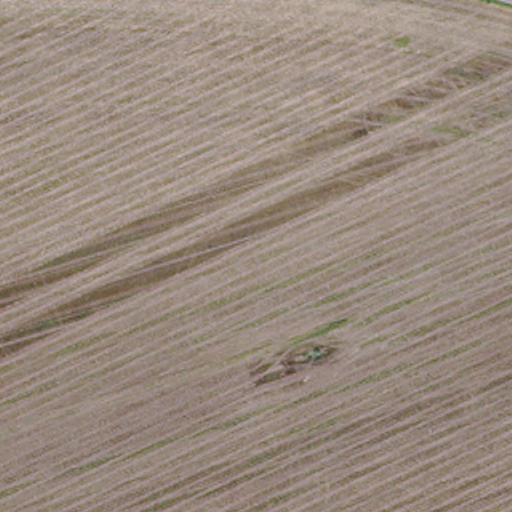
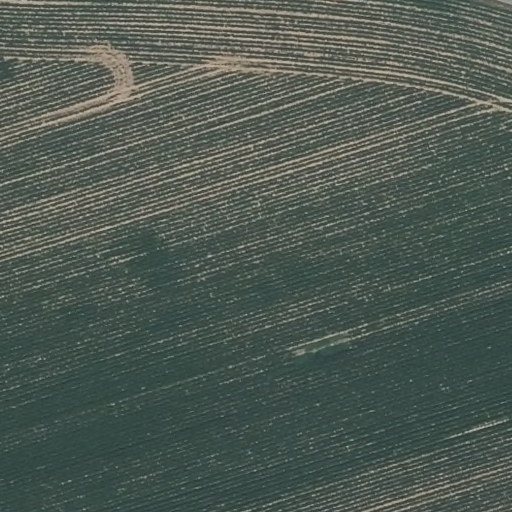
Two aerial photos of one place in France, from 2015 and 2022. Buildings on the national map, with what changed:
[]

